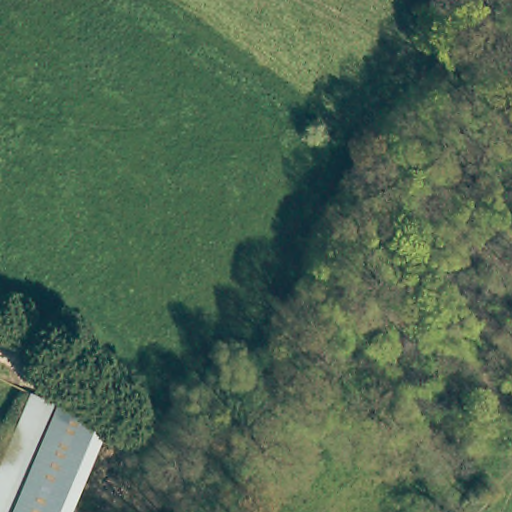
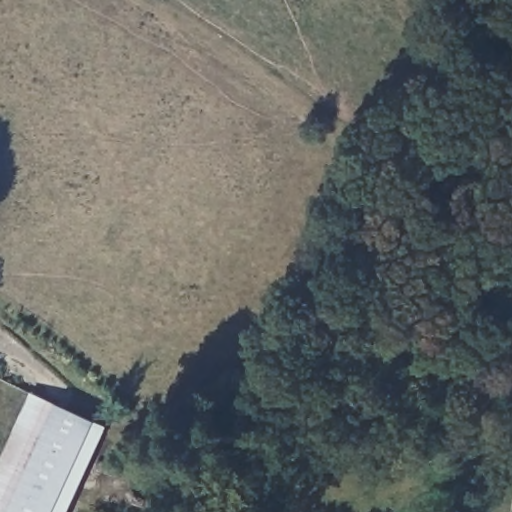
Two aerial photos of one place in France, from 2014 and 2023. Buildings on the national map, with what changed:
unchanged [(14,427),(30,391),(58,404),(90,418),(79,442),(48,512),(0,512),(0,457),(14,427)]
unchanged [(79,442),(90,418),(110,426),(71,512),(48,512),(79,442)]

